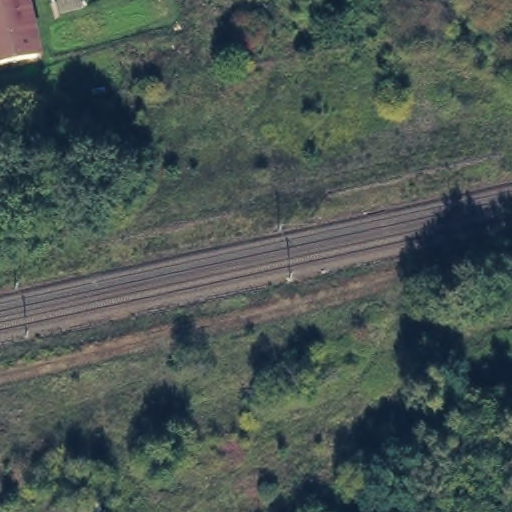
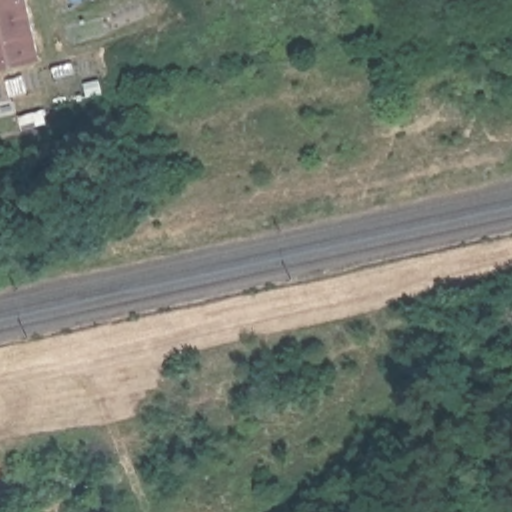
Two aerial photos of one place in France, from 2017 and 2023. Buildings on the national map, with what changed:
unchanged [(36,61),(0,69),(0,0),(23,0),(36,61)]

